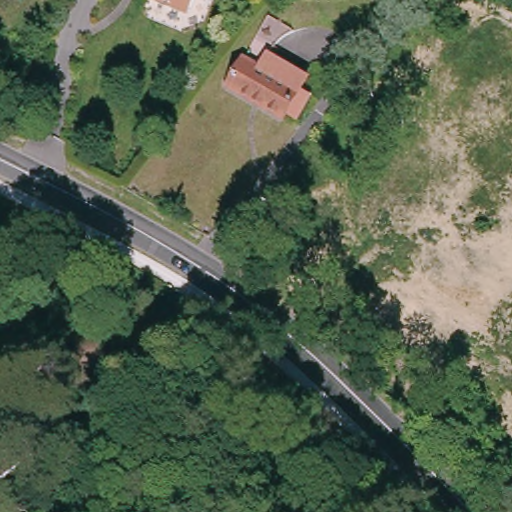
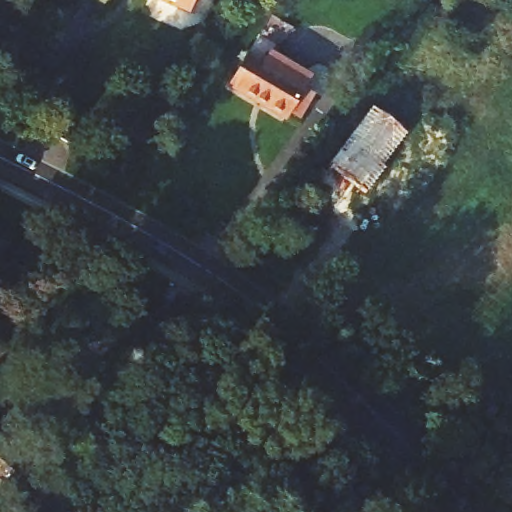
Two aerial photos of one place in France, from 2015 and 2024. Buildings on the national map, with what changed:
unchanged [(179,5),(168,0),(183,0),(179,5)]
unchanged [(221,89),(238,62),(254,74),(265,59),(303,85),(295,96),(306,104),(292,125),(281,117),(275,127),(238,100),(221,89)]
new [(406,134),(381,167),(384,170),(366,195),(326,167),(370,109),(406,134)]
unchanged [(16,461),(0,480),(0,447),(16,461)]

